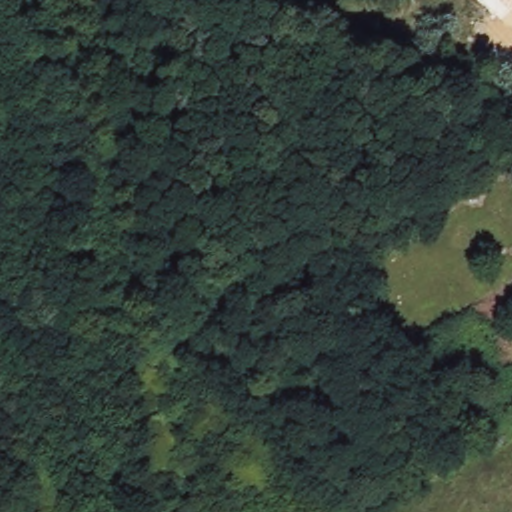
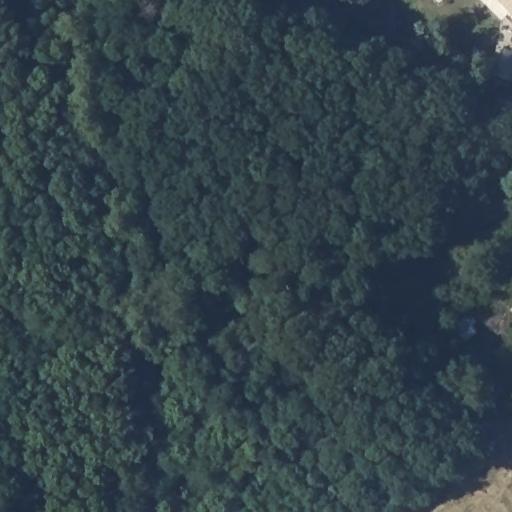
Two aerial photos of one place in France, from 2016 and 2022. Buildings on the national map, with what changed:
unchanged [(512,14),(498,0),(512,0),(512,14)]

